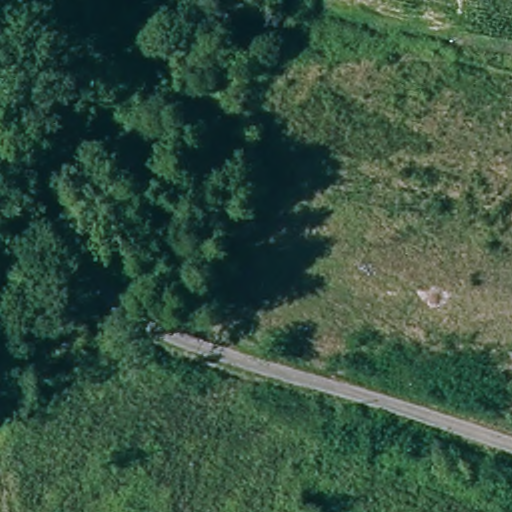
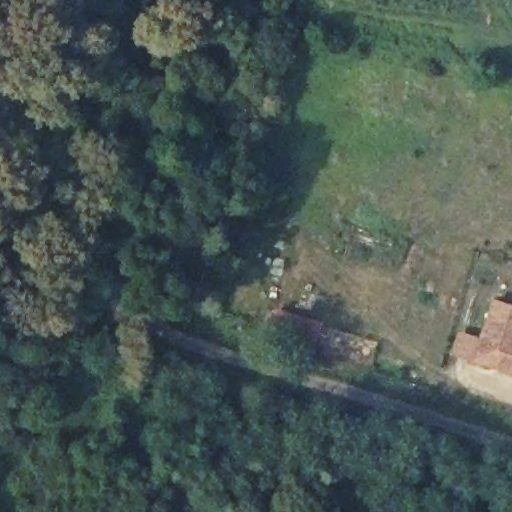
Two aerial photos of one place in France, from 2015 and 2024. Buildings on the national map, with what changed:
new [(512,306),(512,376),(452,356),(460,332),(480,338),(492,299),(512,306)]

